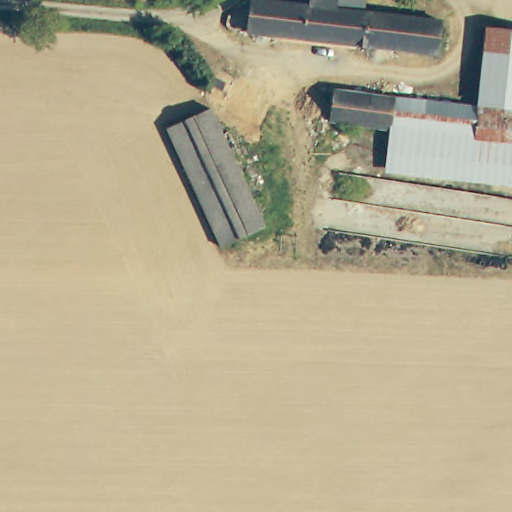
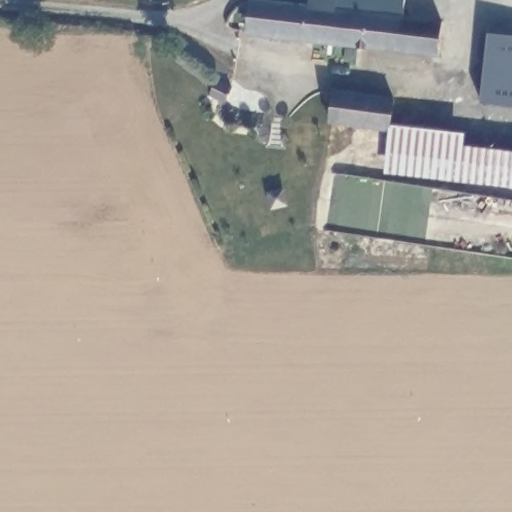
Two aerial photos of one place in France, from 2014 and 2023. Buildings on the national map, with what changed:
unchanged [(439,57),(248,36),(253,0),(274,0),(311,5),(311,0),(368,0),(367,11),(442,18),(439,57)]
unchanged [(512,173),(476,170),(392,162),(395,132),(395,127),(478,134),(481,105),(486,62),(490,30),(512,32),(512,173)]
demolished [(210,99),(218,82),(231,87),(222,105),(210,99)]
unchanged [(395,132),(336,126),(340,91),(481,105),(478,134),(395,127),(395,132)]
demolished [(226,249),(170,130),(212,111),(267,230),(226,249)]

